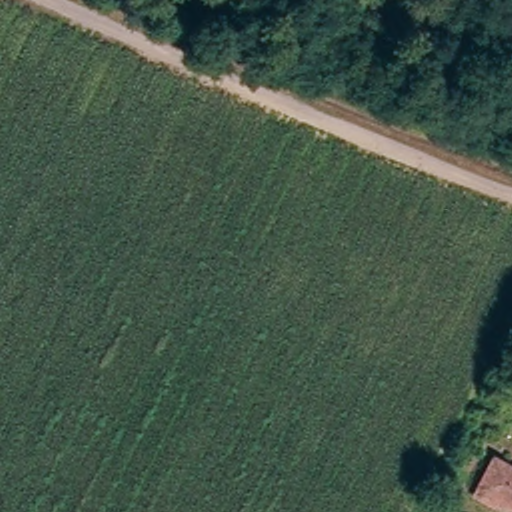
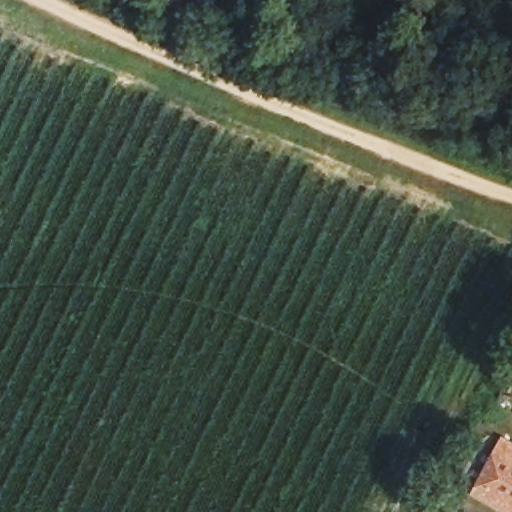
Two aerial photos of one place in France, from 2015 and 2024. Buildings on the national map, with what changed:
unchanged [(512,455),(512,505),(483,488),(507,452),(512,455)]

